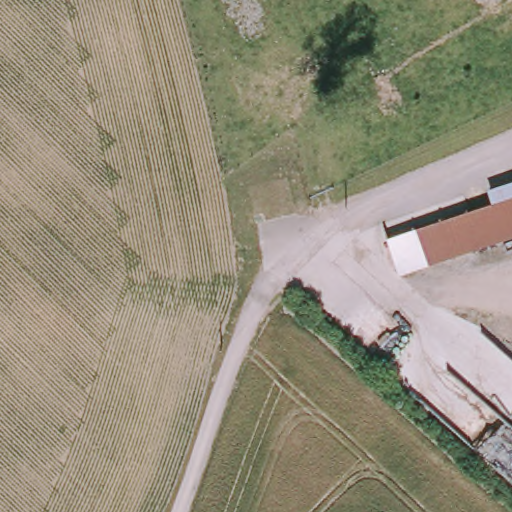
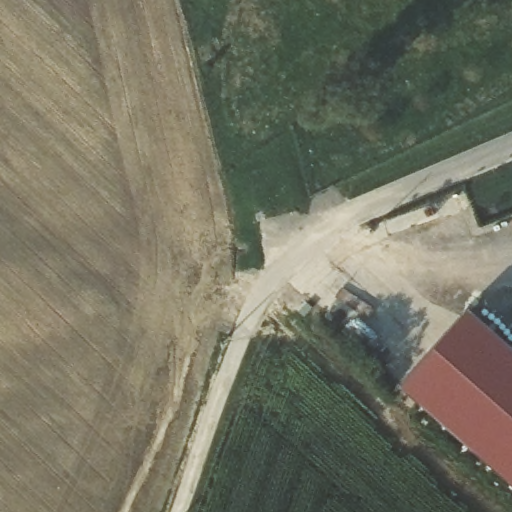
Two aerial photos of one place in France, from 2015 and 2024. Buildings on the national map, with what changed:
unchanged [(401,273),(390,234),(491,199),(487,189),(512,180),(512,234),(401,273)]
new [(398,387),(468,309),(512,348),(512,487),(398,387)]

